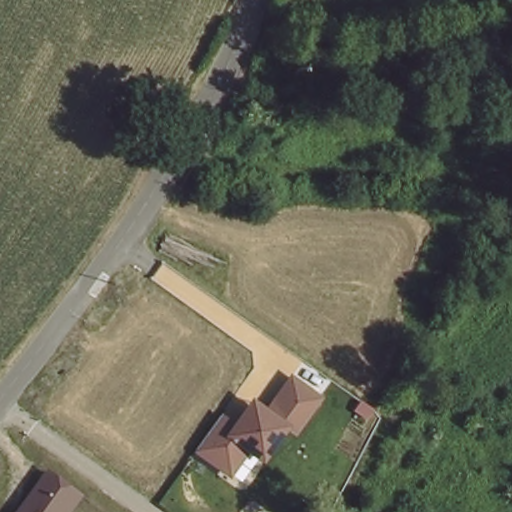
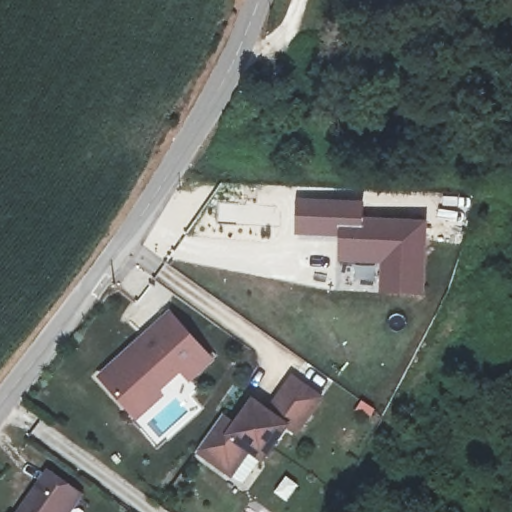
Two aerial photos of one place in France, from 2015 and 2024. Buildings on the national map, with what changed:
new [(380,294),(380,265),(339,263),(339,238),(294,235),(297,198),(365,202),(364,219),(428,223),(425,296),(380,294)]
new [(137,420),(95,377),(169,309),(215,359),(190,384),(181,374),(161,393),(160,393),(163,397),(137,420)]
unchanged [(326,396),(297,437),(289,432),(267,464),(251,453),(233,480),(196,452),(224,413),(236,422),(254,398),(268,408),(293,375),(326,396)]
unchanged [(18,512),(47,468),(86,494),(74,512),(18,512)]
unchanged [(13,512),(9,512),(10,511),(13,512)]

